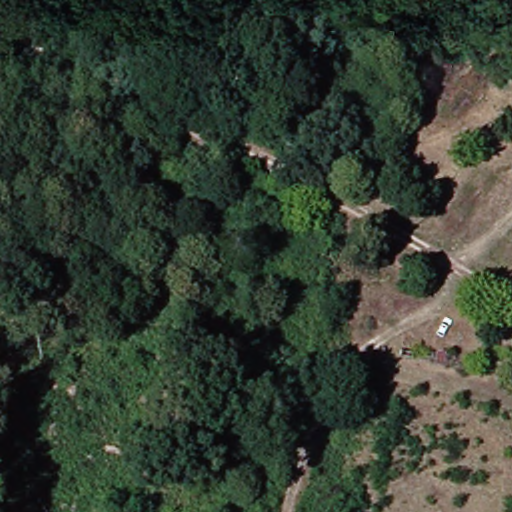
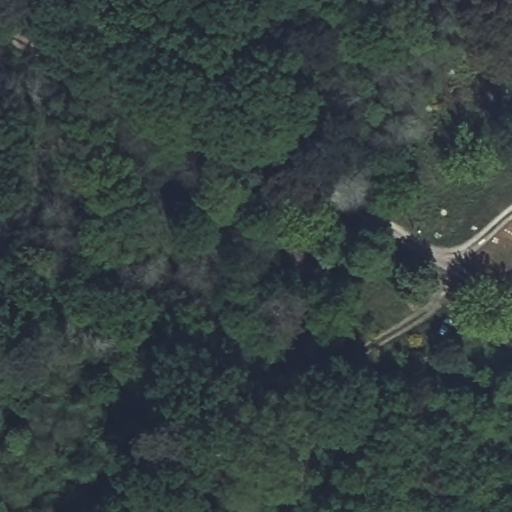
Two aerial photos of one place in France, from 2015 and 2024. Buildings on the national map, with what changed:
[]

